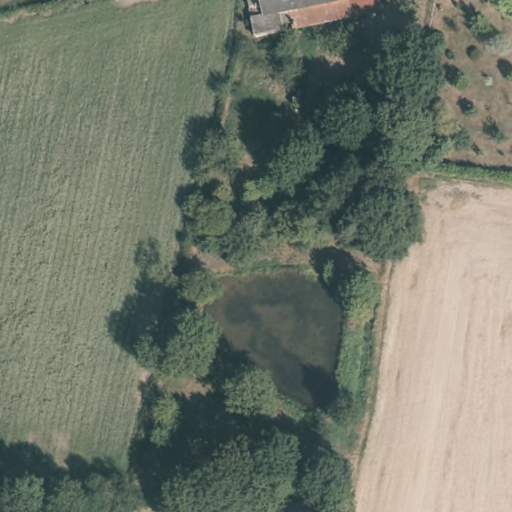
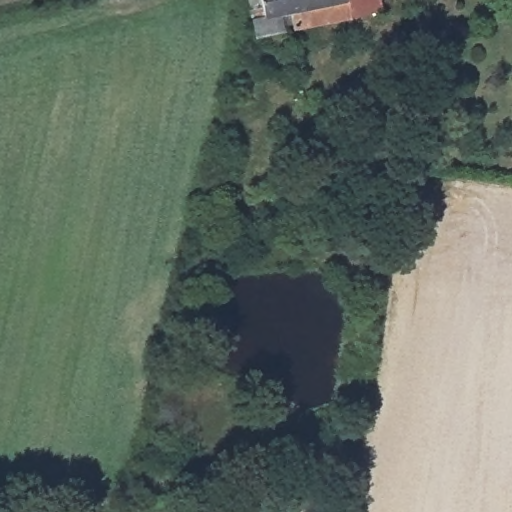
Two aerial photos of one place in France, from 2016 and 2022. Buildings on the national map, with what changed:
unchanged [(289,19),(279,20),(280,34),(252,39),(245,0),(342,0),(347,20),(291,32),(289,19)]
unchanged [(347,20),(342,0),(375,0),(378,13),(347,20)]

